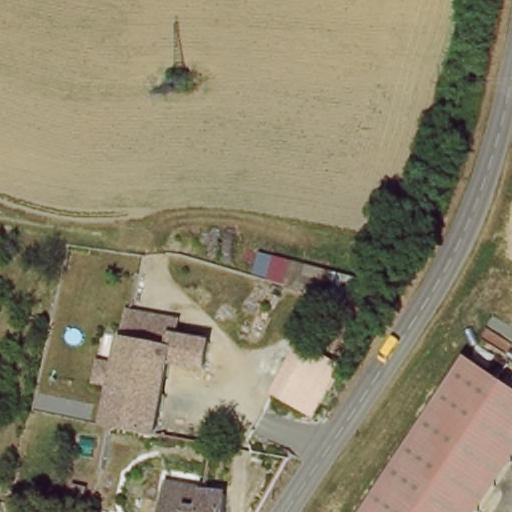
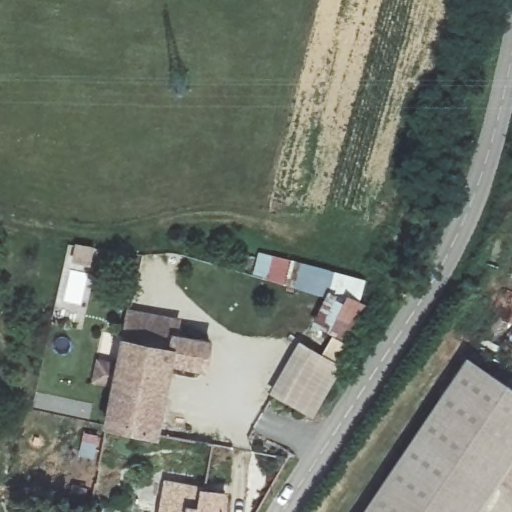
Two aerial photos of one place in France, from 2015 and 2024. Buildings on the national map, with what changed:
unchanged [(260,254),(367,282),(360,307),(366,310),(339,362),(304,344),(325,297),(253,277),(260,254)]
unchanged [(174,349),(125,338),(131,309),(179,319),(177,338),(174,349)]
unchanged [(115,385),(125,338),(174,349),(177,338),(213,345),(207,371),(172,366),(165,396),(156,435),(106,424),(115,385)]
unchanged [(466,358),(512,388),(512,463),(479,512),(363,512),(466,358)]
unchanged [(226,512),(166,512),(172,486),(210,496),(230,500),(226,512)]

